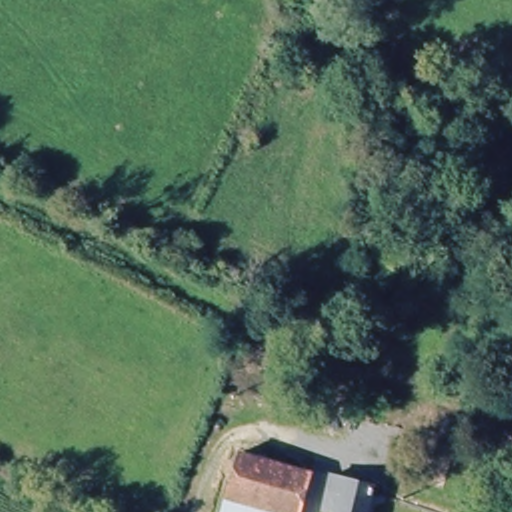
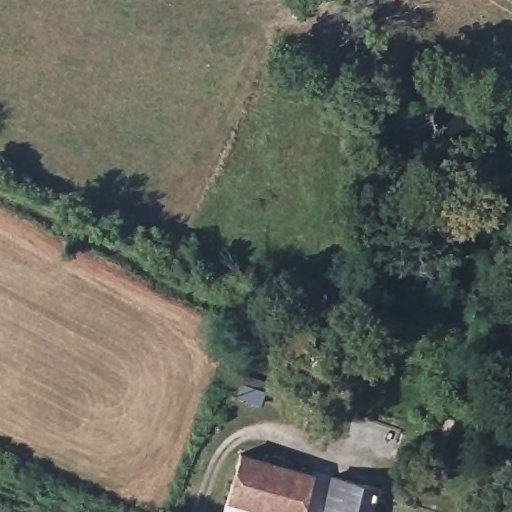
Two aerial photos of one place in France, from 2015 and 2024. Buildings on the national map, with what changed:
unchanged [(303,512),(226,512),(230,500),(246,456),(281,466),(315,476),(303,512)]
unchanged [(375,512),(338,512),(341,505),(323,500),(330,470),(382,484),(382,488),(375,512)]

